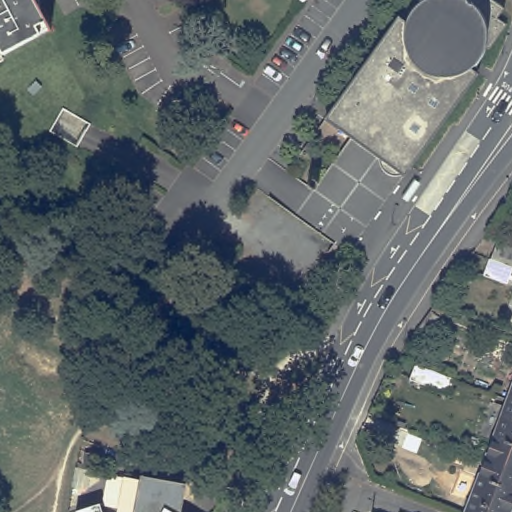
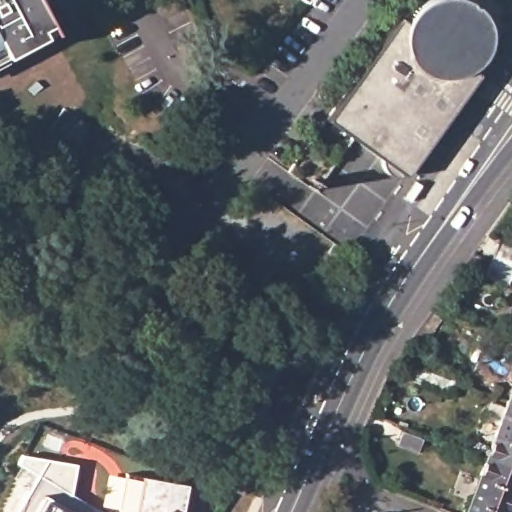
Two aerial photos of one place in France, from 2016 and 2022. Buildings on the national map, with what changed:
unchanged [(35,31),(39,39),(0,60),(0,0),(32,0),(46,26),(35,31)]
unchanged [(305,0),(304,1),(301,0),(305,0)]
unchanged [(418,145),(411,154),(412,155),(412,160),(411,165),(409,170),(408,170),(405,173),(401,175),(396,176),(391,175),(386,173),(383,169),(381,165),(380,160),(381,155),(383,150),(357,131),(352,138),(325,119),(398,18),(403,21),(418,0),(492,0),(504,9),(497,19),(507,25),(489,50),(488,49),(472,71),(477,75),(423,150),(418,145)]
unchanged [(50,131),(63,108),(91,124),(77,148),(50,131)]
unchanged [(482,278),(487,262),(494,247),(512,253),(512,290),(482,278)]
unchanged [(408,381),(413,366),(453,380),(447,395),(408,381)]
unchanged [(491,449),(512,392),(512,457),(491,449)]
unchanged [(470,507),(491,449),(512,457),(512,512),(483,512),(470,507)]
new [(35,476),(16,465),(21,453),(76,464),(69,494),(102,512),(14,512),(35,476)]
unchanged [(126,474),(186,485),(181,512),(119,512),(126,474)]

